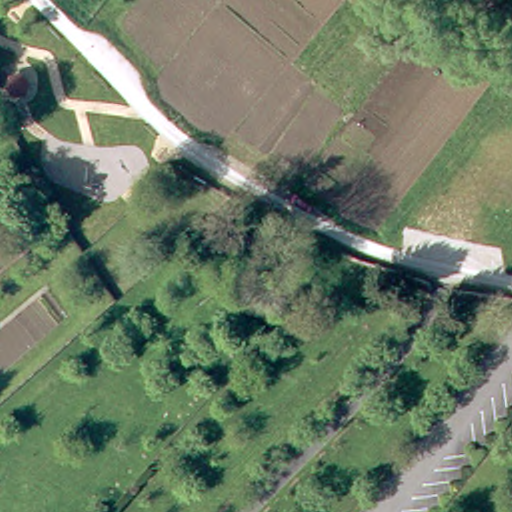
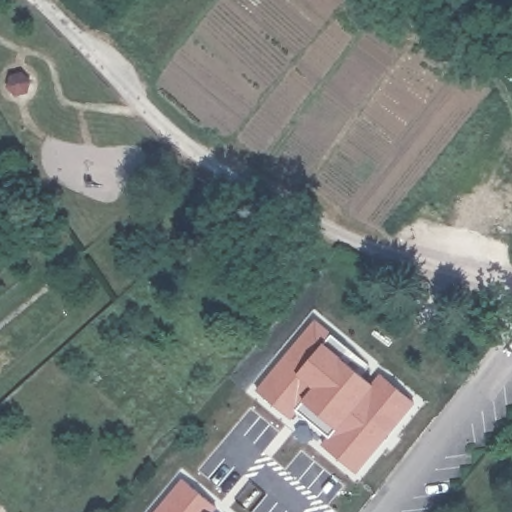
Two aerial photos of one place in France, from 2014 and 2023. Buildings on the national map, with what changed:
new [(317,315),(335,333),(327,341),(371,382),(380,372),(414,401),(355,473),(322,445),(330,436),(299,411),(293,419),(257,388),(317,315)]
new [(216,505),(212,512),(153,512),(182,477),(216,505)]

